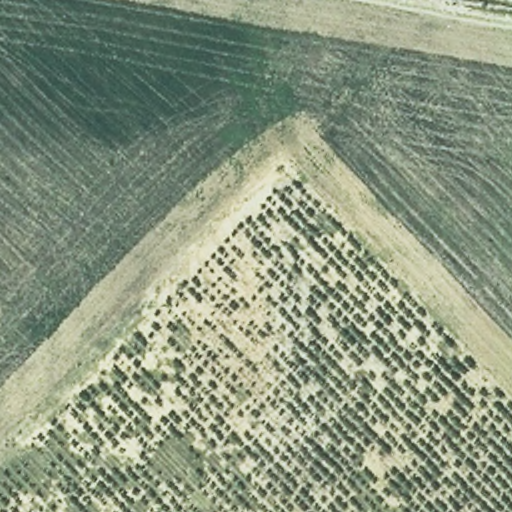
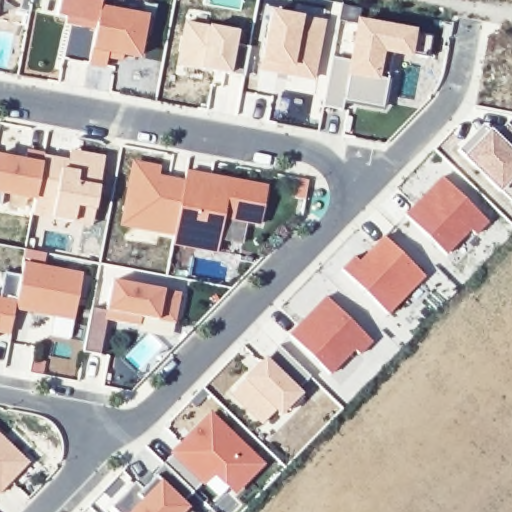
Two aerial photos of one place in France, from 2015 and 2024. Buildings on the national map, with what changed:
new [(55,16),(58,0),(100,0),(98,9),(95,29),(79,26),(65,23),(66,18),(55,16)]
new [(107,56),(105,66),(88,63),(95,29),(98,9),(145,17),(137,57),(122,55),(122,59),(107,56)]
new [(271,12),(322,22),(312,79),(287,75),(289,66),(279,64),(277,72),(260,69),(271,12)]
new [(185,23),(236,32),(234,45),(249,47),(244,77),(177,65),(185,23)]
new [(342,111),(322,107),(331,58),(351,61),(358,24),(431,37),(427,59),(380,50),(374,77),(387,80),(382,108),(357,103),(344,101),(342,111)]
new [(460,147),(471,136),(475,136),(480,141),(487,133),(492,136),(493,138),(505,126),(512,134),(512,204),(456,150),(459,147),(460,147)]
new [(75,217),(33,210),(36,192),(44,152),(68,156),(70,147),(81,148),(105,153),(95,205),(92,221),(75,217)]
new [(27,148),(44,152),(36,192),(4,187),(0,207),(0,154),(25,158),(27,148)]
new [(120,223),(133,162),(160,168),(158,178),(182,183),(185,173),(199,176),(267,188),(260,226),(222,219),(215,252),(170,244),(172,234),(120,223)]
new [(415,204),(419,207),(432,193),(429,190),(442,177),(487,222),(475,235),(470,230),(445,255),(404,215),(415,204)]
new [(359,262),(372,249),(383,237),(424,277),(387,314),(341,270),(353,257),(359,262)]
new [(14,310),(21,275),(23,263),(82,274),(73,321),(52,317),(46,316),(14,310)]
new [(14,310),(10,334),(0,333),(0,271),(21,275),(14,310)]
new [(90,309),(106,311),(111,281),(179,294),(173,325),(140,319),(139,327),(106,321),(100,355),(82,352),(90,309)]
new [(312,310),(325,297),(371,342),(359,355),(353,350),(329,375),(288,335),(300,324),(312,310)]
new [(296,391),(302,398),(290,411),(286,407),(280,414),(275,410),(262,423),(232,393),(252,372),(263,361),(277,346),(310,377),(296,391)]
new [(210,416),(260,464),(234,492),(227,485),(207,507),(163,464),(210,416)]
new [(0,492),(0,437),(27,463),(0,492)]
new [(142,489),(154,477),(152,476),(163,464),(207,507),(202,512),(115,512),(110,507),(135,482),(142,489)]

